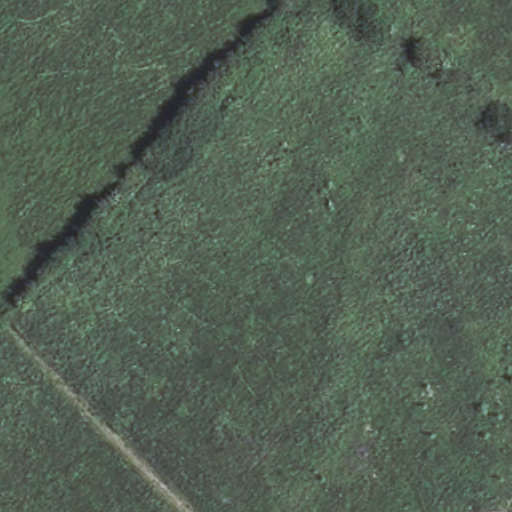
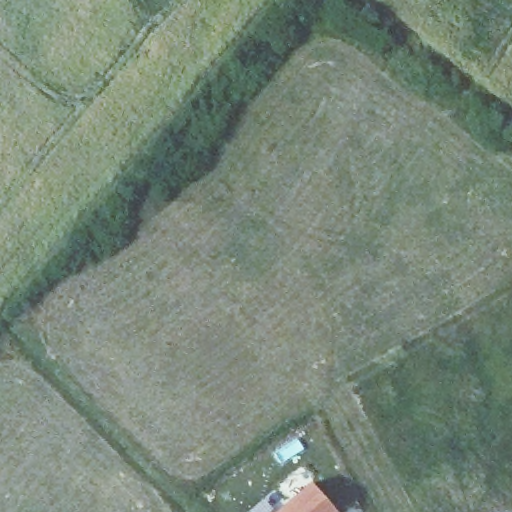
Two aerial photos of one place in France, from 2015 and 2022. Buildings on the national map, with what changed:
new [(338,512),(278,512),(312,483),(338,512)]

